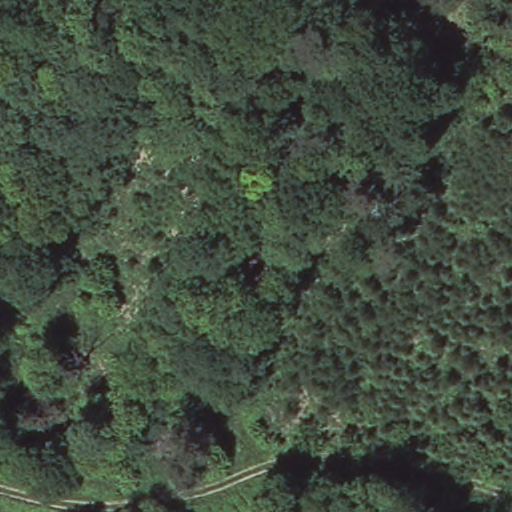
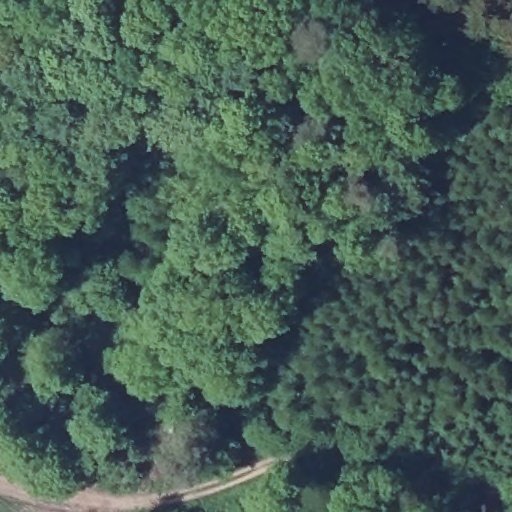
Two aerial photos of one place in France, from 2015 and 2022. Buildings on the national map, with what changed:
[]

